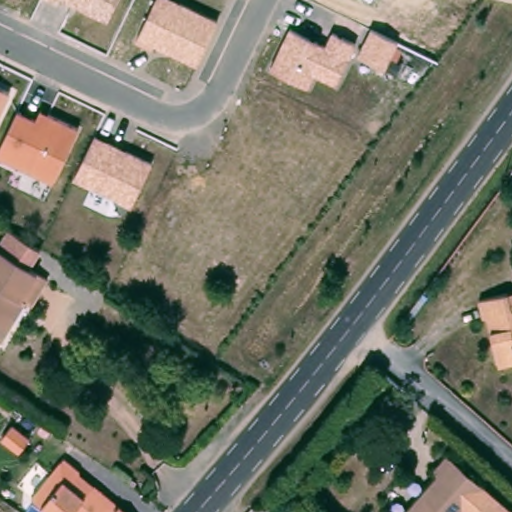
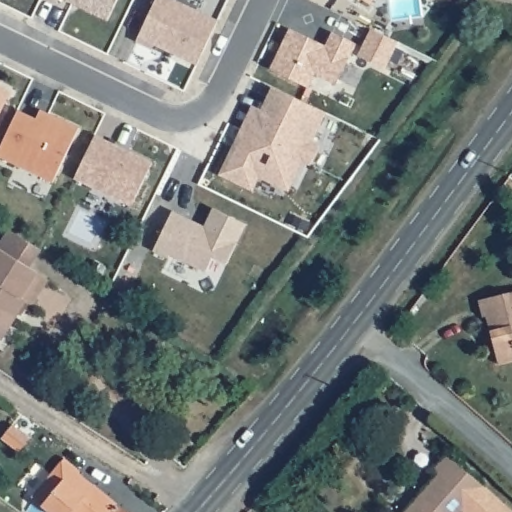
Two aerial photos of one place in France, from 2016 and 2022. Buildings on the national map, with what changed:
unchanged [(51,0),(59,0),(58,3),(51,0)]
unchanged [(116,0),(107,19),(69,0),(116,0)]
unchanged [(176,0),(218,20),(199,64),(154,44),(152,49),(138,38),(155,0),(176,0)]
new [(367,0),(370,0),(369,1),(367,0)]
unchanged [(373,26),(401,41),(387,68),(358,54),(373,26)]
unchanged [(290,28),(324,44),(330,30),(355,43),(337,83),(315,73),(309,86),(271,68),(290,28)]
new [(279,183),(258,174),(252,187),(220,172),(233,144),(235,139),(241,128),(253,104),(262,108),(273,85),(324,110),(310,140),(318,144),(309,161),(303,158),(288,188),(279,183)]
unchanged [(0,111),(0,90),(8,94),(0,111)]
unchanged [(0,148),(18,109),(36,118),(41,109),(79,129),(53,183),(0,158),(0,148)]
unchanged [(94,135),(151,164),(133,205),(74,178),(94,135)]
new [(173,212),(188,219),(185,223),(203,231),(205,228),(214,209),(247,224),(228,264),(214,258),(207,273),(170,255),(169,258),(154,251),(173,212)]
unchanged [(31,265),(3,247),(13,232),(40,249),(31,265)]
unchanged [(54,280),(35,306),(25,299),(12,319),(19,323),(4,343),(0,340),(0,250),(3,247),(54,280)]
new [(168,254),(185,263),(184,266),(166,258),(168,254)]
unchanged [(507,290),(512,311),(512,362),(499,366),(479,299),(507,290)]
unchanged [(441,473),(435,468),(449,453),(488,488),(465,512),(406,512),(441,473)]
unchanged [(93,494),(80,485),(66,506),(74,512),(49,512),(30,497),(64,456),(89,478),(88,481),(98,489),(93,494)]
unchanged [(93,494),(98,489),(131,512),(74,512),(66,506),(80,485),(93,494)]
unchanged [(512,508),(512,512),(465,512),(476,500),(488,488),(512,508)]

